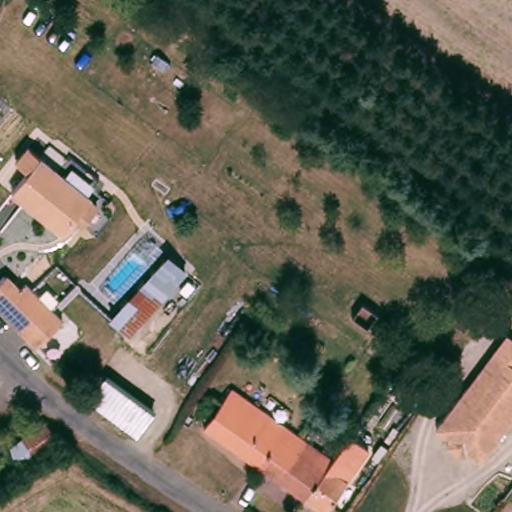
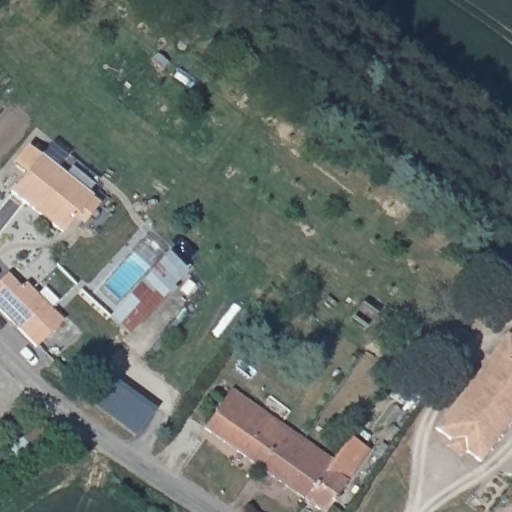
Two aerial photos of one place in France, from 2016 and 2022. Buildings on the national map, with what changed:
unchanged [(46,155),(95,192),(65,229),(14,192),(46,155)]
unchanged [(189,270),(133,334),(85,296),(140,230),(189,270)]
unchanged [(21,293),(29,285),(33,289),(36,285),(68,316),(41,346),(0,311),(0,285),(4,280),(21,293)]
unchanged [(509,382),(493,370),(481,386),(475,381),(512,335),(512,378),(509,382)]
unchanged [(455,436),(459,430),(445,420),(475,381),(481,386),(493,370),(509,382),(512,378),(512,422),(488,452),(474,441),(469,446),(455,436)]
unchanged [(119,385),(158,413),(140,437),(100,408),(119,385)]
unchanged [(269,415),(244,451),(209,426),(233,392),(269,415)]
unchanged [(14,442),(57,413),(70,430),(31,463),(14,442)]
unchanged [(304,438),(295,449),(279,439),(262,464),(244,451),(269,415),(304,438)]
unchanged [(308,494),(262,464),(279,439),(295,449),(304,438),(333,459),(350,435),(371,451),(354,474),(329,508),(308,494)]

